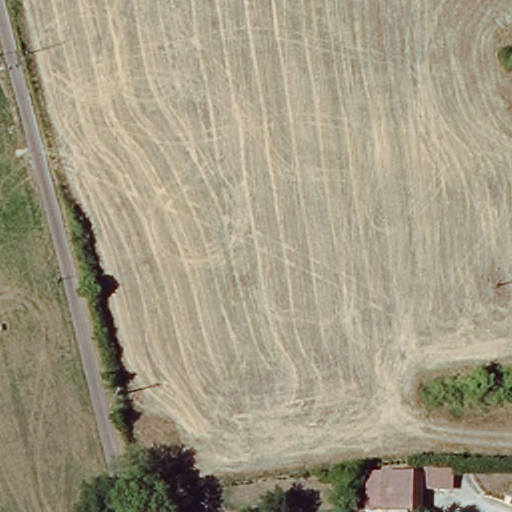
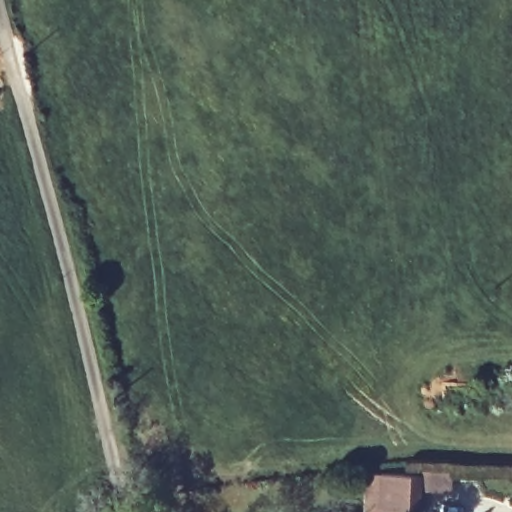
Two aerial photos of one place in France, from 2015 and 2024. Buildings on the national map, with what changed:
unchanged [(382,481),(416,482),(419,482),(417,473),(452,475),(452,494),(420,495),(420,509),(384,511),(367,510),(365,483),(382,481)]

